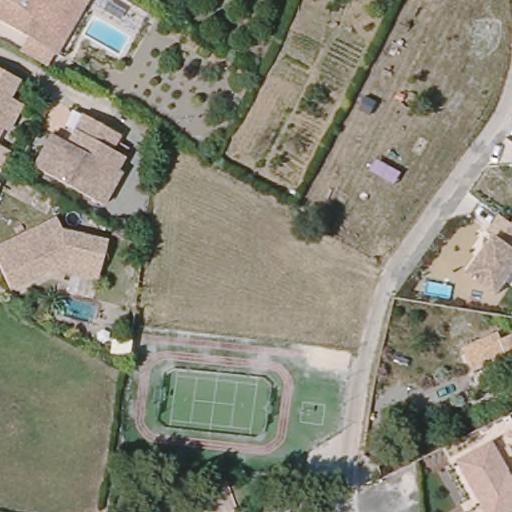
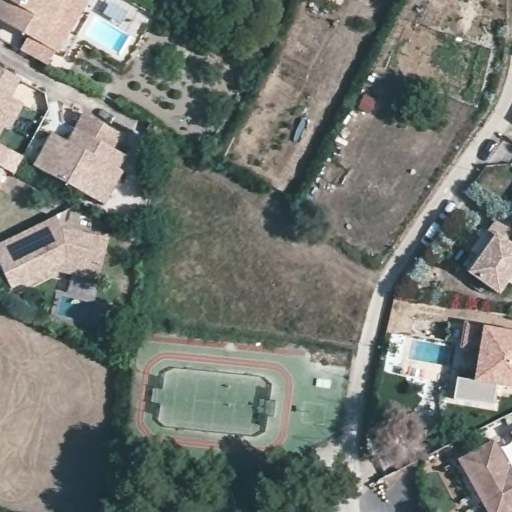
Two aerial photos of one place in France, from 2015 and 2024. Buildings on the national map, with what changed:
unchanged [(55,50),(43,43),(0,16),(0,0),(49,0),(37,3),(40,16),(54,24),(66,31),(55,50)]
unchanged [(80,6),(69,0),(84,0),(80,6)]
unchanged [(25,74),(16,93),(23,99),(10,123),(6,122),(0,132),(0,61),(25,74)]
unchanged [(51,126),(72,135),(85,109),(123,129),(118,139),(128,145),(102,194),(35,159),(51,126)]
unchanged [(14,147),(6,162),(0,159),(0,139),(14,147)]
unchanged [(48,269),(9,288),(0,269),(0,241),(53,215),(60,230),(106,241),(100,270),(97,281),(48,269)]
unchanged [(468,273),(495,235),(486,232),(496,215),(512,226),(512,275),(497,295),(468,273)]
new [(478,351),(462,349),(467,323),(483,327),(512,332),(512,388),(497,386),(495,407),(454,401),(458,377),(475,379),(478,351)]
demolished [(486,361),(474,367),(461,342),(497,324),(501,333),(512,328),(512,372),(506,361),(490,368),(486,361)]
demolished [(512,384),(512,399),(505,387),(512,384)]

